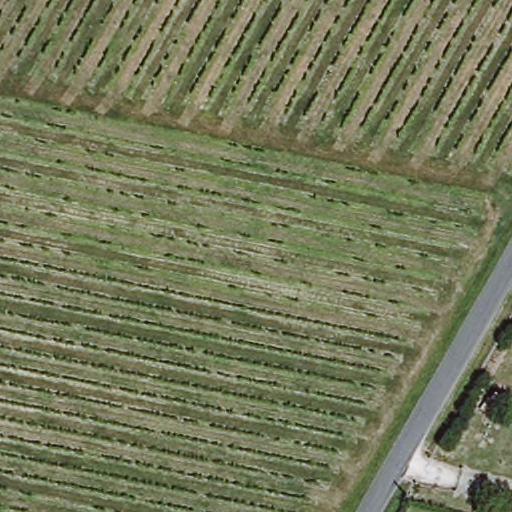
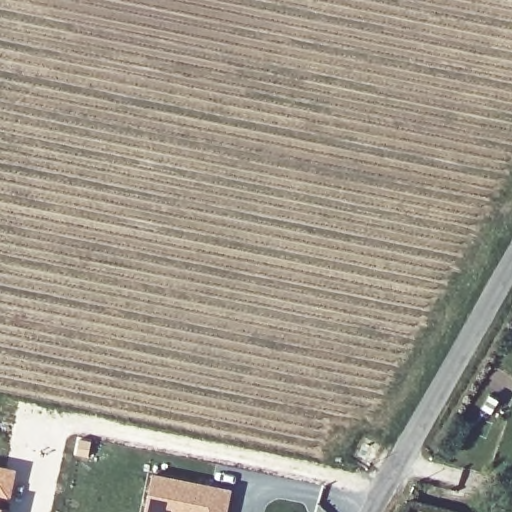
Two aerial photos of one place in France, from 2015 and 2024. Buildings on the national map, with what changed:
new [(17,468),(10,501),(5,500),(2,512),(0,512),(0,465),(17,468)]
new [(151,477),(229,491),(225,512),(144,512),(151,477)]

